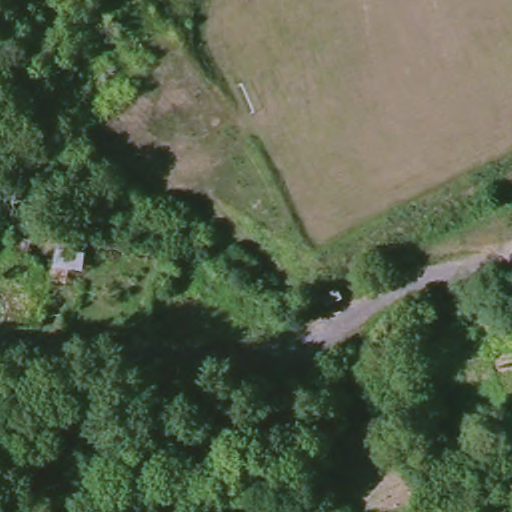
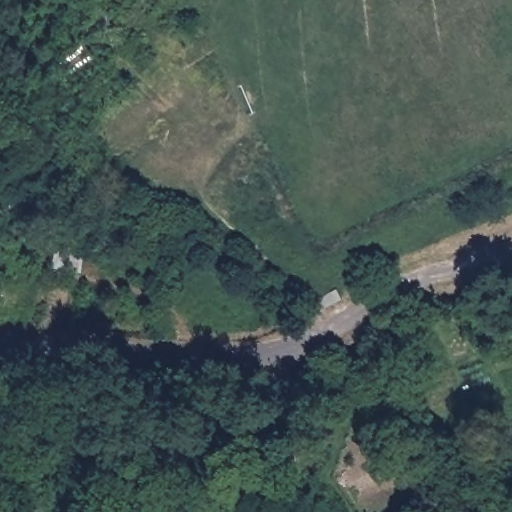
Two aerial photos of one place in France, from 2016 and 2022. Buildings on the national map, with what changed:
unchanged [(9,240),(12,225),(32,228),(30,243),(9,240)]
unchanged [(55,266),(57,251),(82,255),(79,270),(55,266)]
unchanged [(470,463),(485,458),(490,474),(475,479),(470,463)]

